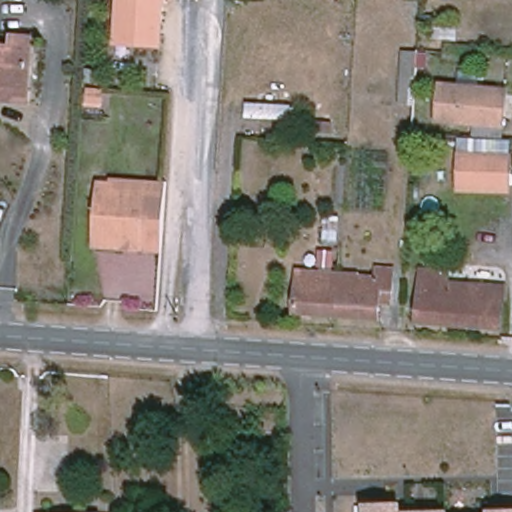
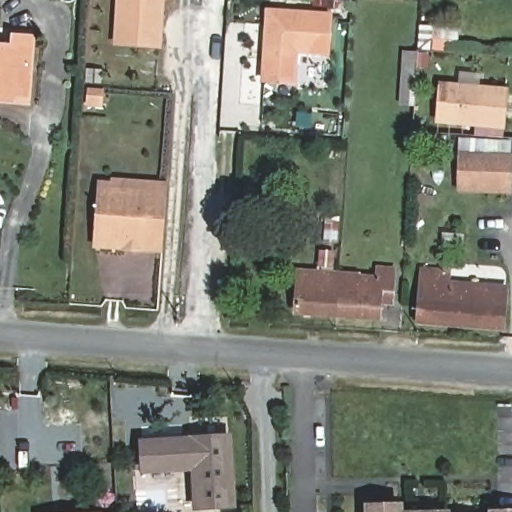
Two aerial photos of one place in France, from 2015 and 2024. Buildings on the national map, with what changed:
unchanged [(117,43),(120,0),(162,0),(159,47),(117,43)]
unchanged [(381,0),(404,0),(403,1),(381,0)]
new [(298,54),(296,84),(261,82),(265,9),(332,13),(330,55),(298,54)]
unchanged [(10,101),(11,91),(0,90),(0,48),(14,49),(15,39),(32,40),(28,102),(10,101)]
unchanged [(414,105),(402,104),(405,54),(417,55),(414,105)]
unchanged [(506,90),(503,127),(474,126),(438,122),(441,85),(506,90)]
unchanged [(504,141),(510,140),(509,192),(457,193),(460,139),(475,139),(474,126),(503,129),(504,141)]
unchanged [(96,247),(100,184),(114,185),(147,187),(147,198),(166,199),(162,251),(143,249),(113,248),(96,247)]
unchanged [(325,216),(340,217),(338,244),(324,242),(325,216)]
unchanged [(340,274),(378,276),(378,268),(379,268),(394,270),(392,304),(380,303),(379,319),(337,316),(295,314),(298,271),(340,274)]
unchanged [(507,288),(503,329),(418,323),(422,270),(450,272),(449,284),(507,288)]
new [(233,505),(197,507),(194,468),(143,470),(141,441),(228,437),(233,505)]
unchanged [(364,501),(403,500),(404,509),(449,509),(450,512),(364,512),(364,501)]
unchanged [(486,507),(512,507),(512,512),(487,512),(486,507)]

